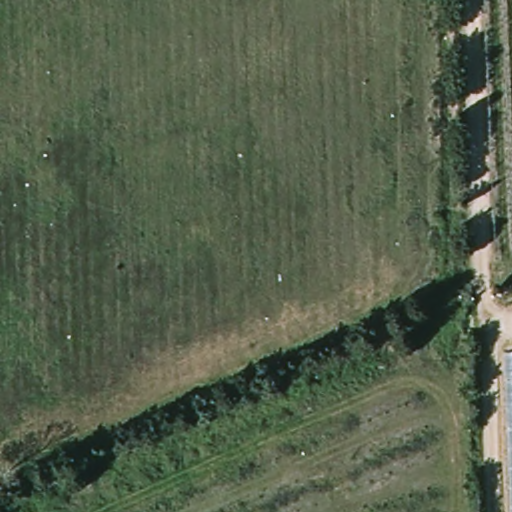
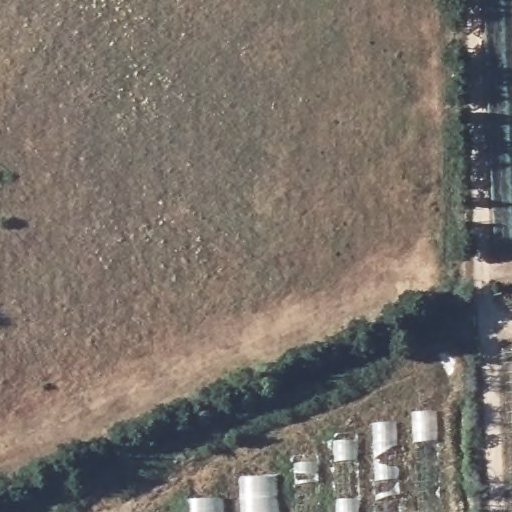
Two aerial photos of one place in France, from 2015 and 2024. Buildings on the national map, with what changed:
unchanged [(512,350),(512,459),(507,350),(512,350)]
new [(241,498),(241,479),(297,477),(296,457),(335,455),(335,435),(375,434),(374,425),(414,423),(414,413),(438,412),(441,512),(187,512),(187,500),(241,498)]

